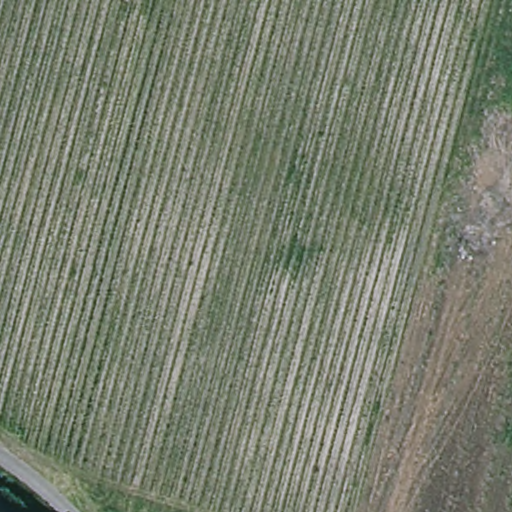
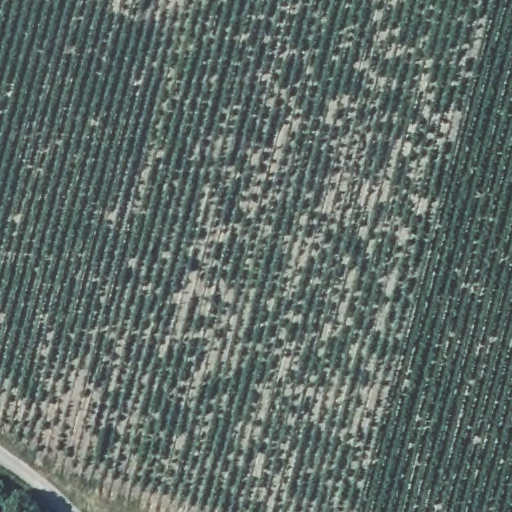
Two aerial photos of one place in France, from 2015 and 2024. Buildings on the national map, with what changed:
[]

